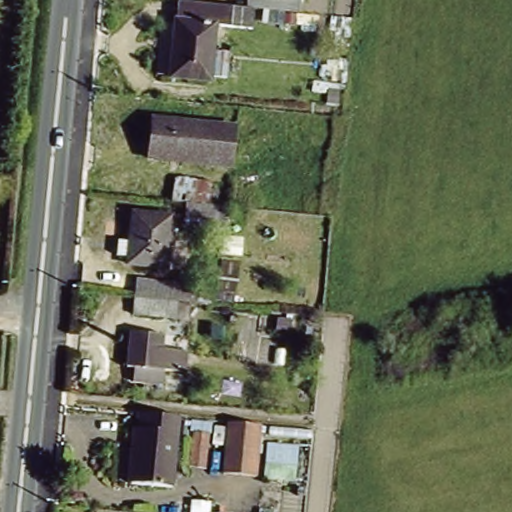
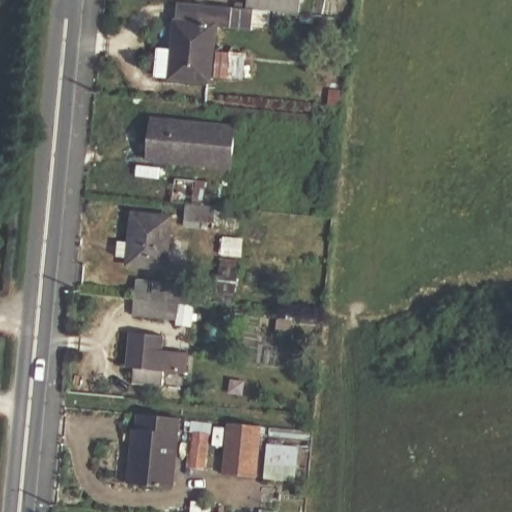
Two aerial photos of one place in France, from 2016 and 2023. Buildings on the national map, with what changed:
unchanged [(179,0),(236,6),(234,27),(217,26),(211,80),(171,76),(179,0)]
unchanged [(243,0),(290,0),(289,12),(243,7),(243,0)]
unchanged [(148,111),(237,125),(234,168),(141,154),(148,111)]
unchanged [(179,178),(210,182),(208,204),(176,200),(179,178)]
unchanged [(120,242),(131,244),(137,211),(174,216),(166,267),(117,257),(120,242)]
unchanged [(208,272),(214,250),(235,255),(229,277),(208,272)]
unchanged [(181,322),(132,312),(136,296),(138,282),(187,292),(185,302),(181,322)]
unchanged [(131,330),(165,334),(163,348),(182,351),(180,373),(126,366),(131,330)]
unchanged [(128,412),(186,418),(179,482),(122,476),(128,412)]
unchanged [(259,423),(255,475),(220,473),(225,420),(259,423)]
unchanged [(297,442),(293,478),(262,475),(265,441),(297,442)]

